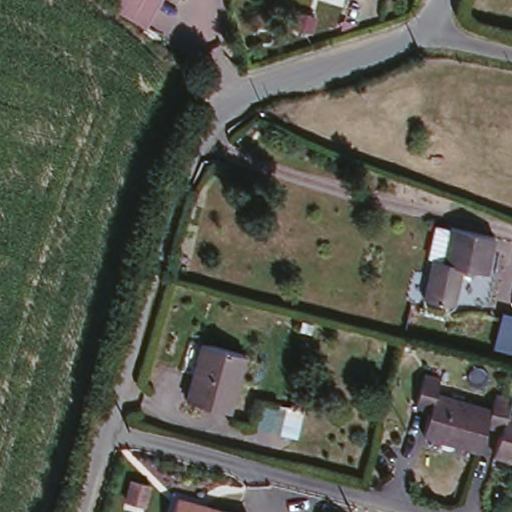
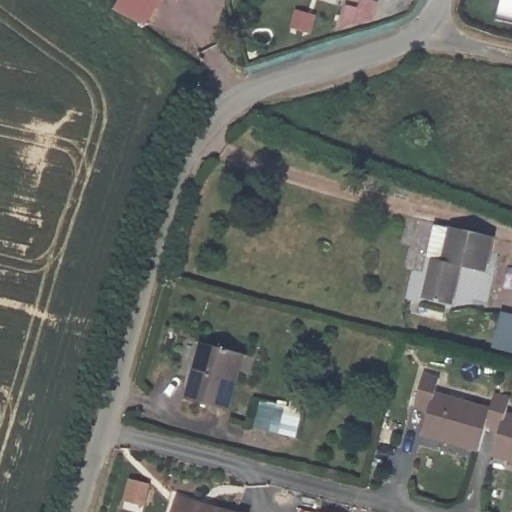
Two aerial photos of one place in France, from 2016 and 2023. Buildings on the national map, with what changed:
unchanged [(433,250),(449,255),(458,219),(494,230),(486,263),(463,258),(452,297),(423,289),(433,250)]
unchanged [(512,314),(512,351),(491,345),(501,311),(512,314)]
unchanged [(201,338),(245,350),(228,407),(186,395),(201,338)]
unchanged [(414,402),(423,370),(438,375),(434,387),(489,404),(493,389),(508,394),(505,407),(512,410),(512,457),(493,451),(499,426),(485,422),(478,447),(421,431),(429,407),(414,402)]
unchanged [(251,424),(258,397),(302,409),(295,439),(251,424)]
unchanged [(128,477),(151,483),(145,506),(123,499),(128,477)]
unchanged [(230,512),(172,512),(175,498),(230,512)]

